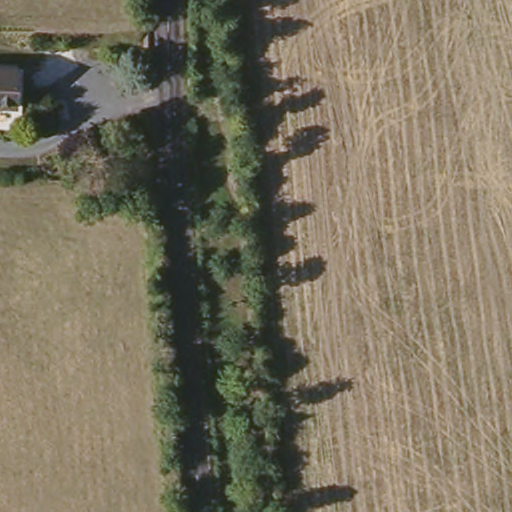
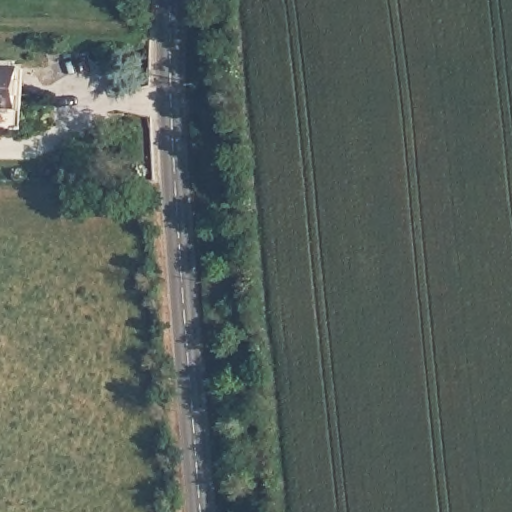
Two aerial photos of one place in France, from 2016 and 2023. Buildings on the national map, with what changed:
unchanged [(11,108),(0,108),(0,69),(13,69),(11,108)]

